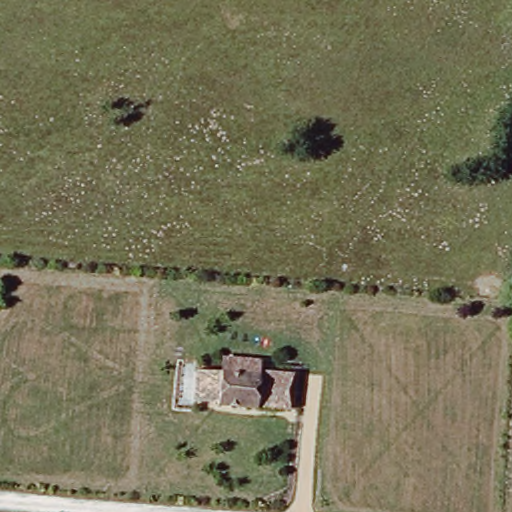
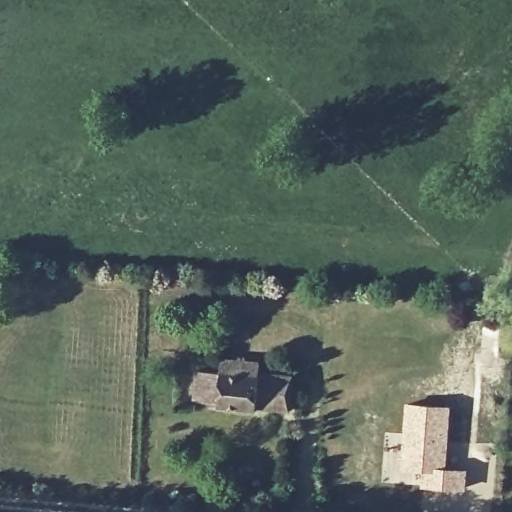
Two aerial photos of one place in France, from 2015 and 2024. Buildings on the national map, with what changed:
unchanged [(225,373),(225,358),(260,360),(260,370),(295,375),(291,412),(221,405),(222,400),(194,399),(195,372),(225,373)]
new [(398,458),(405,400),(451,404),(447,466),(468,468),(466,491),(397,482),(398,458)]

